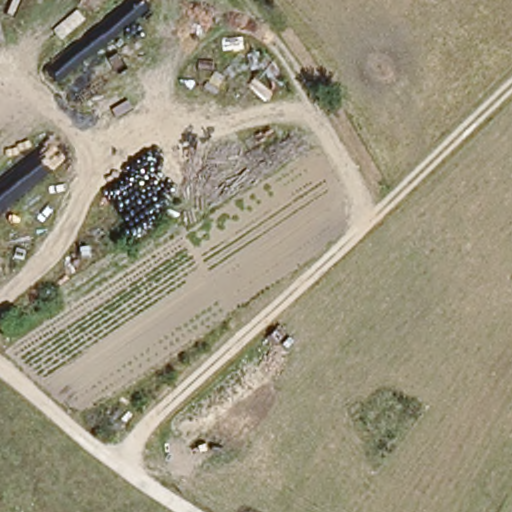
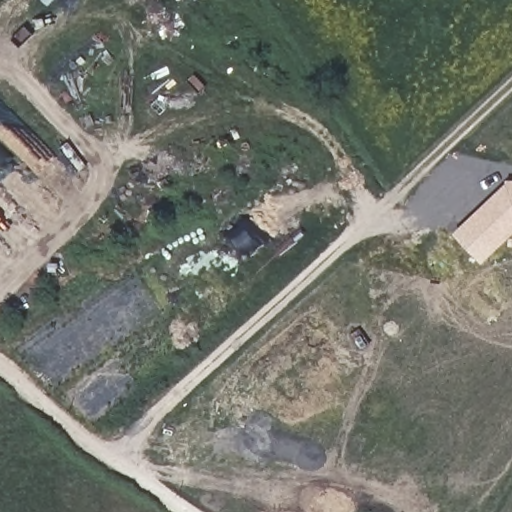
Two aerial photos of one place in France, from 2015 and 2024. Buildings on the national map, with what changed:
new [(454,233),(507,182),(512,182),(512,235),(482,264),(454,233)]

